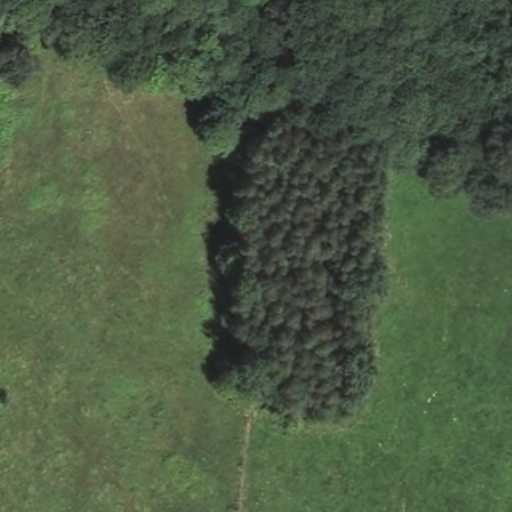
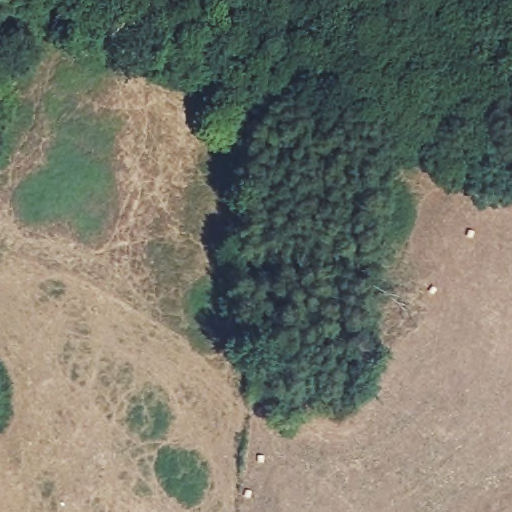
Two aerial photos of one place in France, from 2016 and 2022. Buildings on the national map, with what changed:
unchanged [(264,125),(261,145),(258,158),(223,151),(228,120),(264,125)]

